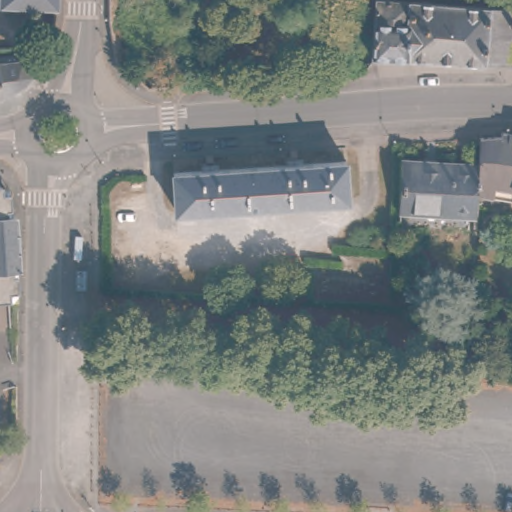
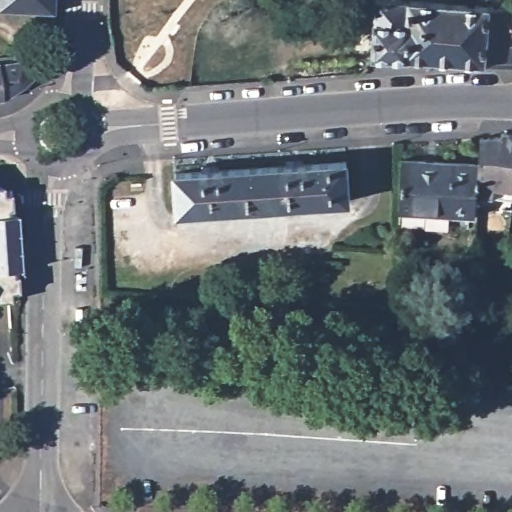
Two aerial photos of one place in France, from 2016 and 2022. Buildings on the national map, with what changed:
unchanged [(0,9),(0,0),(55,0),(55,11),(0,9)]
unchanged [(466,65),(411,61),(410,62),(376,60),(380,21),(376,21),(372,19),(371,17),(372,13),(375,12),(380,13),(381,1),(406,3),(512,13),(512,70),(466,65)]
unchanged [(15,67),(23,61),(26,61),(31,67),(41,79),(28,90),(20,95),(6,101),(6,103),(0,104),(0,68),(14,66),(15,67)]
unchanged [(481,186),(482,185),(483,168),(485,139),(504,138),(506,133),(512,134),(512,191),(481,186)]
unchanged [(350,201),(178,215),(175,173),(346,158),(350,201)]
unchanged [(449,166),(483,168),(482,185),(481,186),(480,209),(479,219),(455,218),(456,215),(402,212),(404,163),(449,166)]
unchanged [(20,268),(21,289),(15,289),(16,298),(0,300),(0,184),(6,184),(14,191),(15,212),(21,211),(25,255),(26,267),(25,267),(20,268)]

